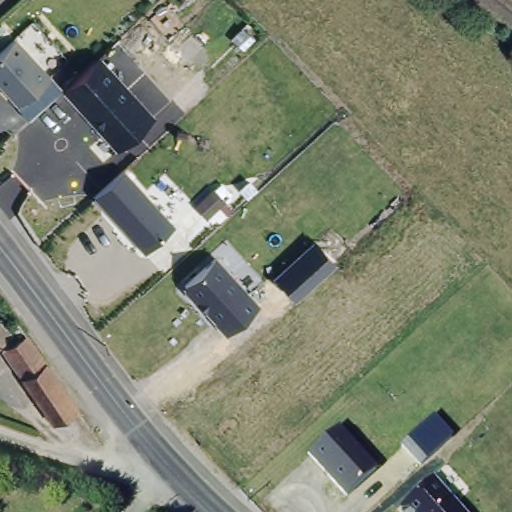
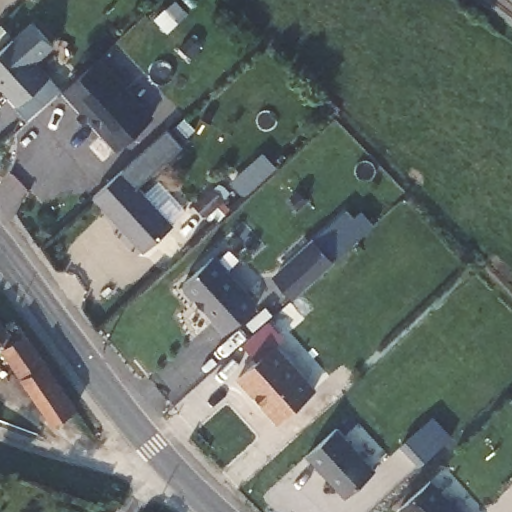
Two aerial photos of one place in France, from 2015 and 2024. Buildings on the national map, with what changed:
unchanged [(49,40),(30,57),(47,76),(17,104),(0,86),(0,50),(13,39),(32,21),(49,40)]
unchanged [(62,87),(97,54),(154,112),(119,148),(62,87)]
unchanged [(94,196),(121,167),(175,222),(144,251),(94,196)]
unchanged [(350,206),(370,226),(291,298),(272,274),(350,206)]
unchanged [(182,286),(212,255),(258,302),(225,335),(182,286)]
new [(285,337),(277,344),(317,389),(277,425),(237,377),(255,360),(241,344),(267,320),(285,337)]
unchanged [(0,341),(0,326),(7,333),(0,341)]
unchanged [(75,408),(53,422),(22,377),(21,378),(2,350),(24,335),(75,408)]
unchanged [(434,413),(452,434),(420,466),(399,445),(434,413)]
unchanged [(305,457),(337,427),(376,470),(345,498),(305,457)]
unchanged [(432,476),(464,512),(403,512),(399,507),(432,476)]

